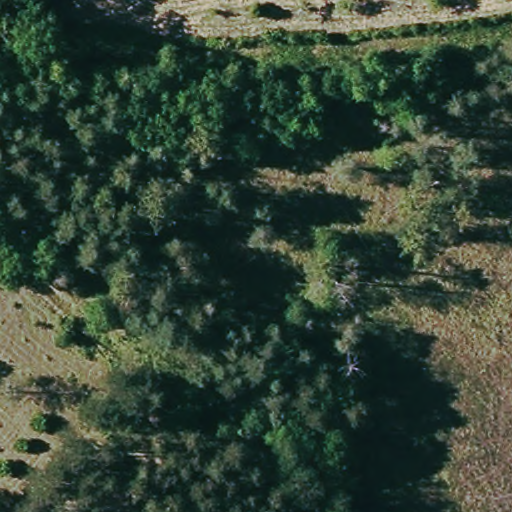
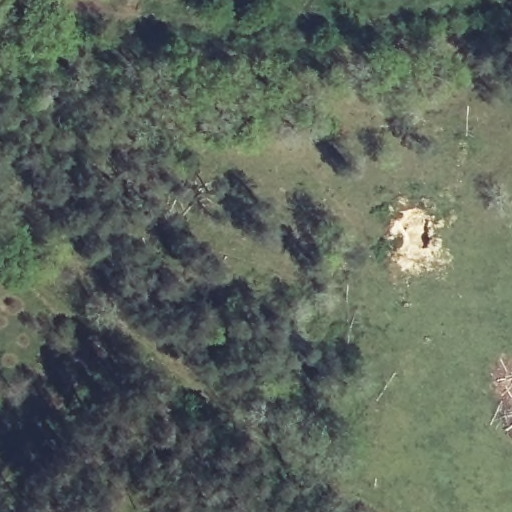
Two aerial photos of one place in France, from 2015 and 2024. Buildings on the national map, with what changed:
[]

